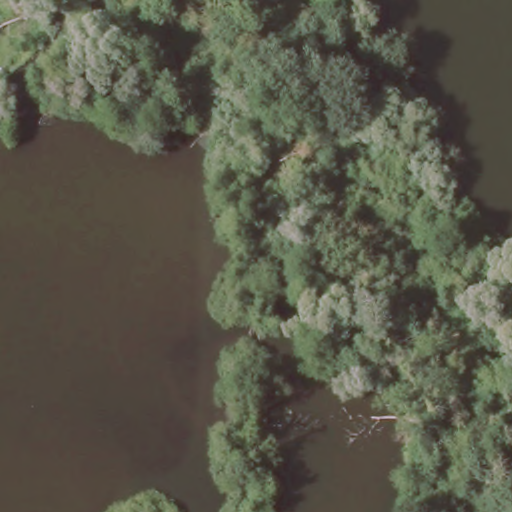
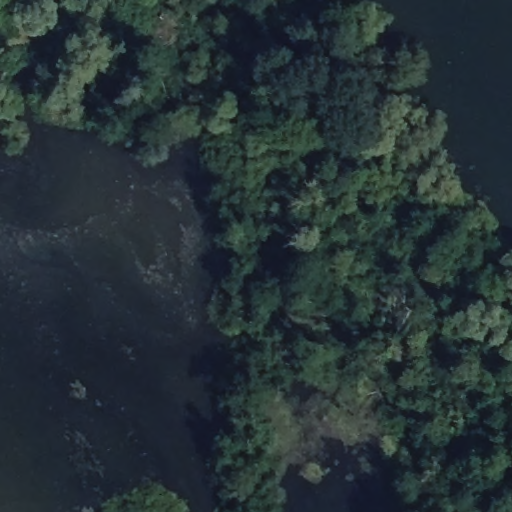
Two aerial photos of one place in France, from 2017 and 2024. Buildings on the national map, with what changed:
unchanged [(310,15),(301,31),(278,18),(287,2),(310,15)]
unchanged [(20,97),(4,117),(0,114),(0,79),(20,97)]

